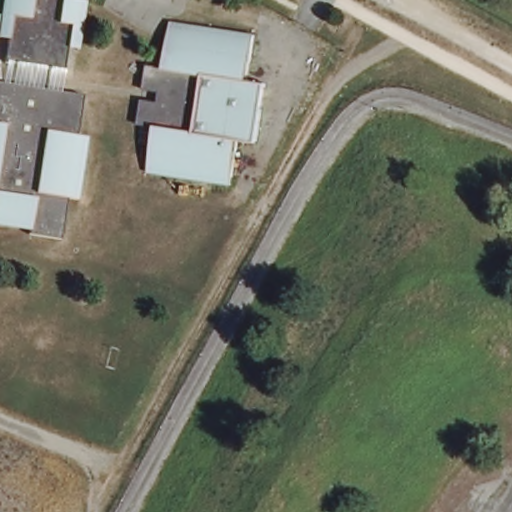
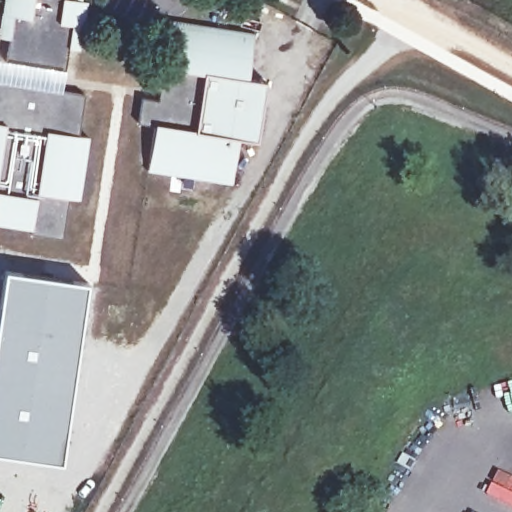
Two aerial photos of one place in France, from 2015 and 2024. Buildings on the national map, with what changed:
unchanged [(5,33),(0,32),(0,0),(81,0),(78,21),(74,44),(65,43),(60,66),(35,62),(26,61),(1,56),(5,33)]
unchanged [(159,61),(166,16),(251,30),(244,74),(262,77),(253,136),(235,133),(227,180),(142,166),(149,121),(132,119),(137,94),(138,84),(142,59),(159,61)]
unchanged [(48,86),(80,91),(72,131),(82,134),(72,196),(62,194),(55,235),(23,229),(23,224),(0,220),(0,77),(10,79),(19,81),(39,84),(48,86)]
new [(62,463),(0,454),(0,314),(6,272),(88,284),(62,463)]

